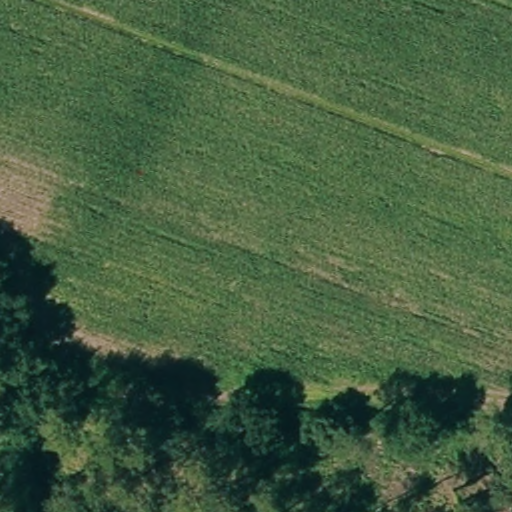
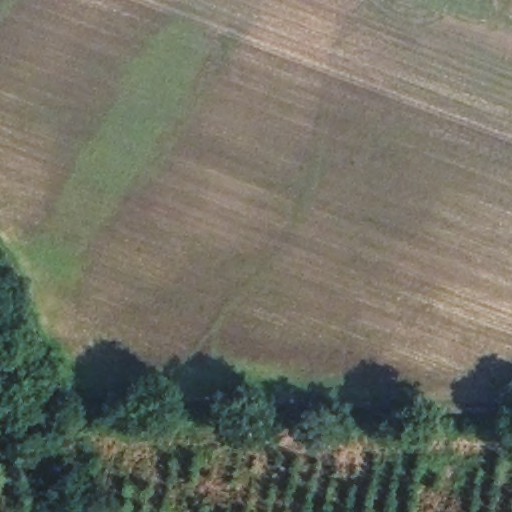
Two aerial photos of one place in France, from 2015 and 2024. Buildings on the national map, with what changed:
[]

